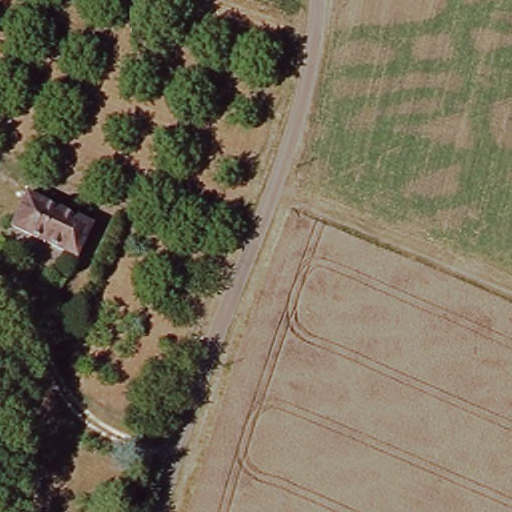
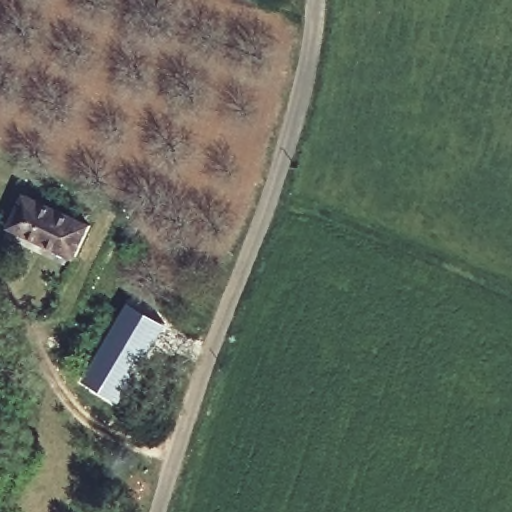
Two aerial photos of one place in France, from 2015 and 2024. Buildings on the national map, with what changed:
unchanged [(25,192),(89,222),(72,258),(9,227),(25,192)]
new [(128,301),(167,325),(139,380),(121,406),(81,380),(128,301)]

